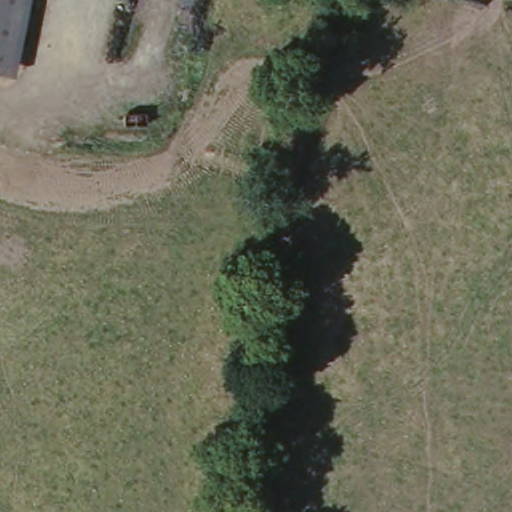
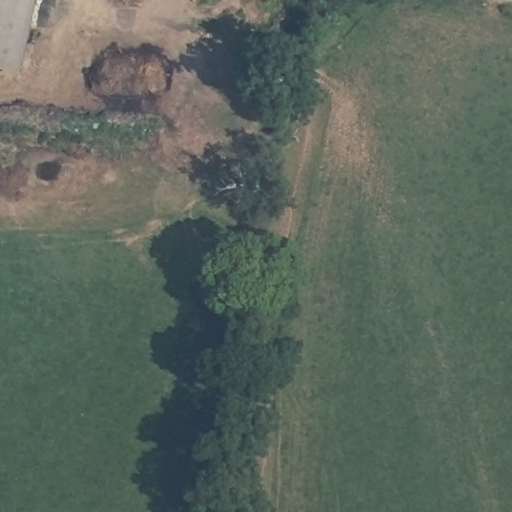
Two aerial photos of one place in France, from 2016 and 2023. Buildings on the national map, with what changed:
unchanged [(27,0),(8,76),(0,74),(0,0),(27,0)]

